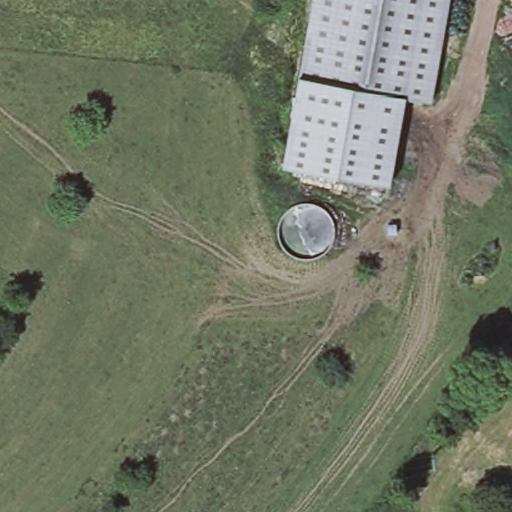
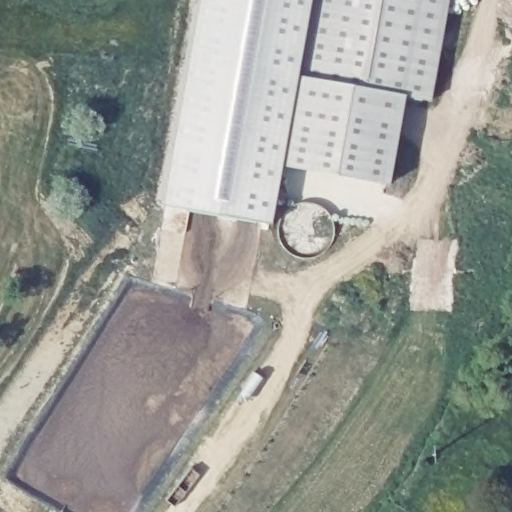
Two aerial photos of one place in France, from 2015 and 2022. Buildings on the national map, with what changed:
new [(285,168),(274,225),(165,205),(199,0),(311,0),(300,77),(285,168)]
unchanged [(404,96),(388,187),(285,168),(300,77),(311,0),(451,0),(433,103),(404,96)]

